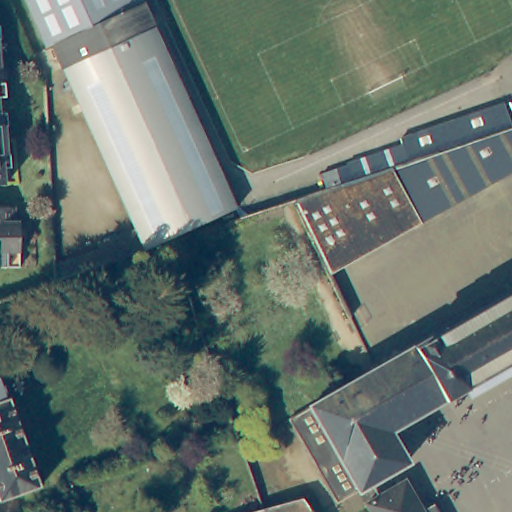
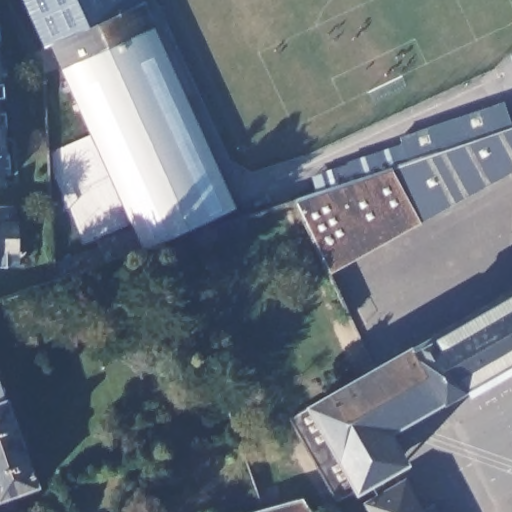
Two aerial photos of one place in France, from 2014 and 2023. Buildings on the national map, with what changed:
unchanged [(43,0),(45,51),(25,0),(43,0)]
unchanged [(53,48),(45,51),(43,0),(129,0),(133,10),(144,5),(223,191),(128,222),(53,48)]
unchanged [(6,86),(7,101),(0,101),(0,86),(6,86)]
unchanged [(345,155),(401,136),(399,127),(501,94),(509,119),(350,173),(345,155)]
unchanged [(1,129),(4,129),(7,158),(4,159),(6,185),(0,186),(0,108),(1,129)]
unchanged [(509,119),(512,118),(512,169),(328,270),(292,192),(350,173),(509,119)]
unchanged [(233,215),(141,252),(128,222),(223,191),(233,215)]
unchanged [(8,268),(0,268),(0,206),(17,206),(17,223),(21,223),(21,255),(20,268),(8,268)]
unchanged [(470,387),(447,401),(445,398),(393,427),(410,459),(342,497),(296,413),(512,289),(512,359),(468,383),(470,387)]
unchanged [(470,387),(468,383),(512,359),(512,374),(474,395),(470,387)]
unchanged [(0,502),(0,373),(1,372),(39,488),(0,502)]
unchanged [(424,507),(435,502),(441,512),(377,512),(369,497),(407,476),(424,507)]
unchanged [(251,505),(259,501),(260,502),(282,496),(297,491),(311,512),(240,512),(251,505)]

